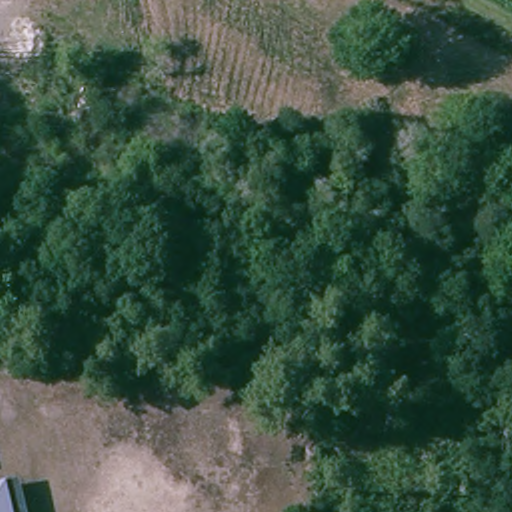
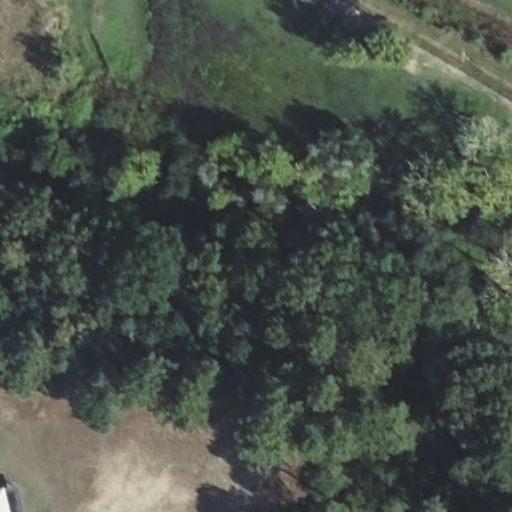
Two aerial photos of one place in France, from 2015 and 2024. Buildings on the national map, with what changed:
unchanged [(22,484),(28,512),(0,512),(0,489),(22,484)]

